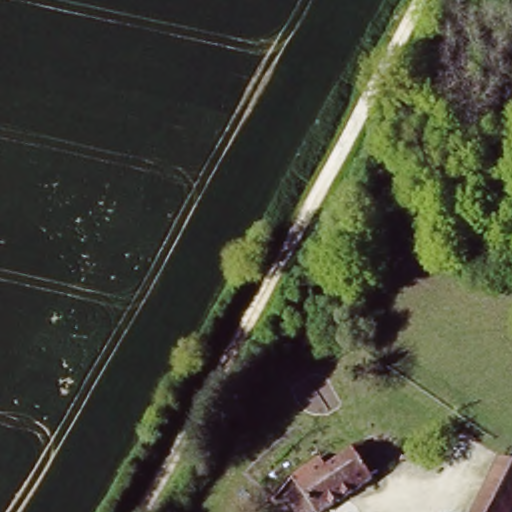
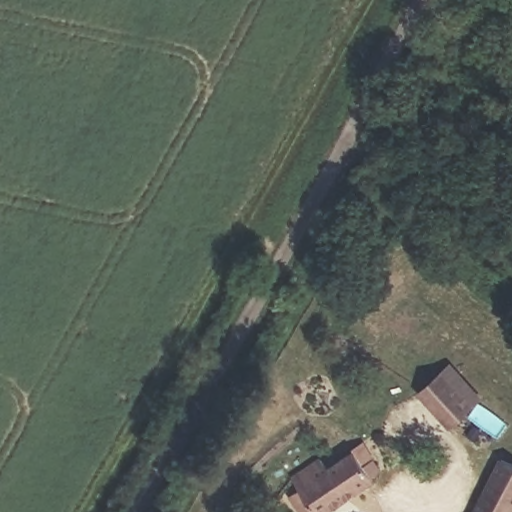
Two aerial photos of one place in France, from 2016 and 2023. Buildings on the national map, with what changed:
new [(450,430),(418,392),(451,362),(484,398),(450,430)]
unchanged [(350,503),(328,475),(337,467),(330,457),(350,443),(357,453),(365,447),(382,470),(375,476),(378,481),(350,503)]
unchanged [(292,487),(320,464),(328,475),(350,503),(339,512),(301,512),(292,501),(299,496),(294,490),(292,487)]
unchanged [(512,512),(505,512),(480,502),(498,465),(512,470),(512,512)]
unchanged [(480,502),(505,512),(476,512),(480,502)]

